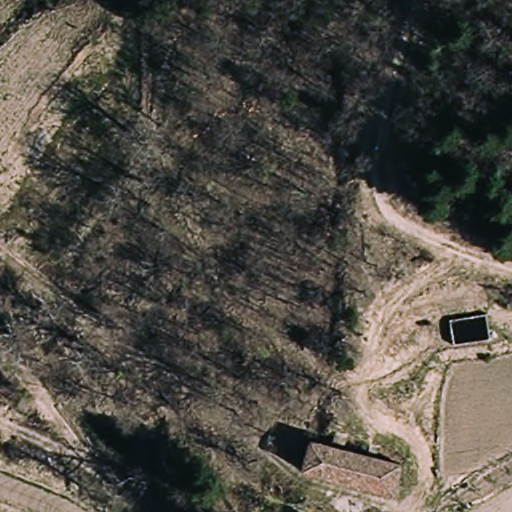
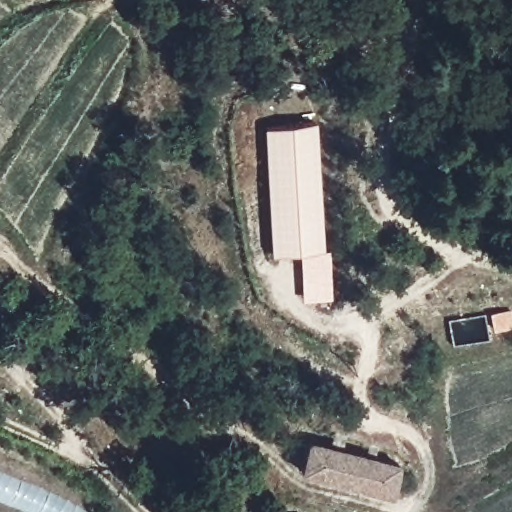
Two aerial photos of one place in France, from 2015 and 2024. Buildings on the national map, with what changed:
new [(265,127),(319,124),(325,252),(271,254),(265,127)]
unchanged [(387,494),(312,473),(317,446),(393,469),(387,494)]
new [(84,512),(27,512),(0,501),(0,473),(77,506),(84,512)]

